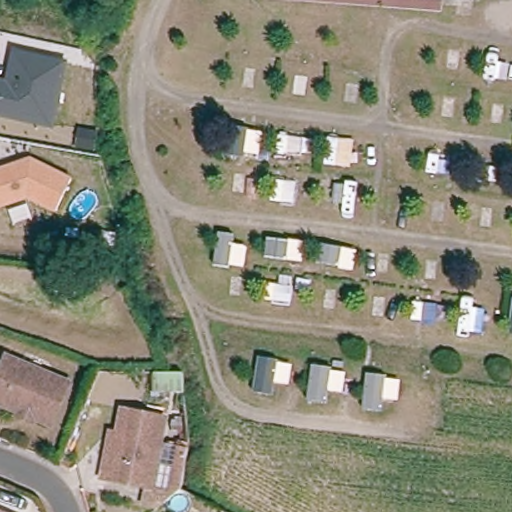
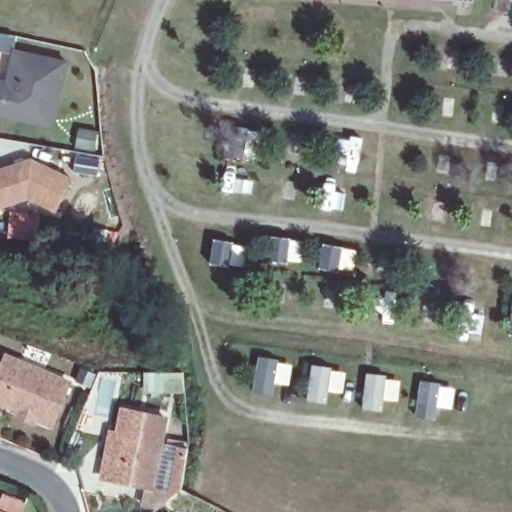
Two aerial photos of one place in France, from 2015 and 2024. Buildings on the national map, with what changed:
unchanged [(0,113),(0,77),(10,80),(17,48),(69,62),(57,110),(52,126),(12,116),(0,113)]
unchanged [(26,196),(0,204),(0,167),(31,158),(70,180),(53,211),(26,196)]
unchanged [(15,411),(0,404),(0,359),(2,355),(64,383),(46,424),(30,417),(28,422),(13,415),(15,411)]
unchanged [(156,414),(151,435),(141,484),(137,483),(92,473),(96,454),(102,428),(107,429),(112,405),(156,414)]
unchanged [(151,435),(180,441),(178,447),(173,482),(147,504),(132,501),(137,483),(141,484),(151,435)]

